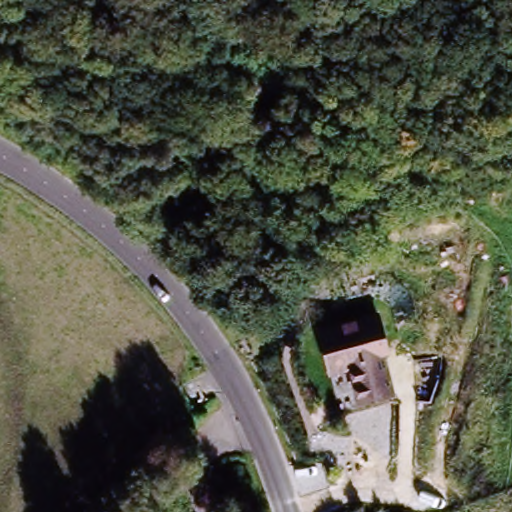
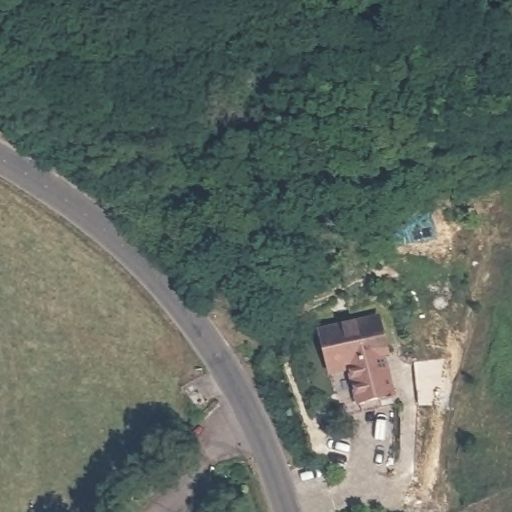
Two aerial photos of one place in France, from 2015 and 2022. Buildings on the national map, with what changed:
unchanged [(401,399),(359,409),(351,369),(332,372),(322,326),(384,313),(401,399)]

